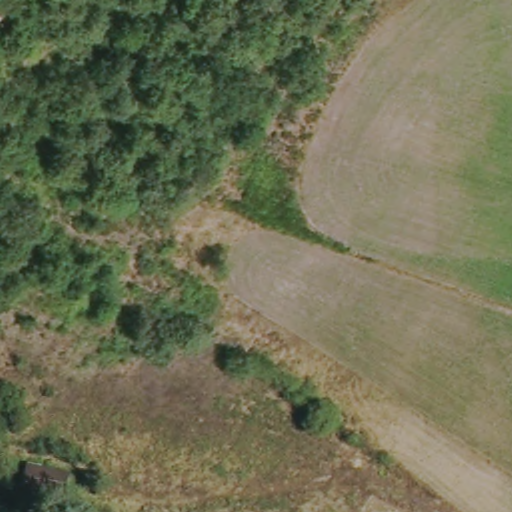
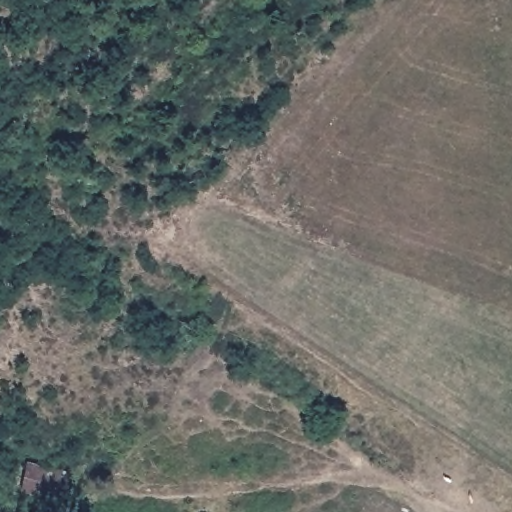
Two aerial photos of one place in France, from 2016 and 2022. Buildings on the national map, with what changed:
unchanged [(32,466),(75,475),(69,500),(26,491),(32,466)]

